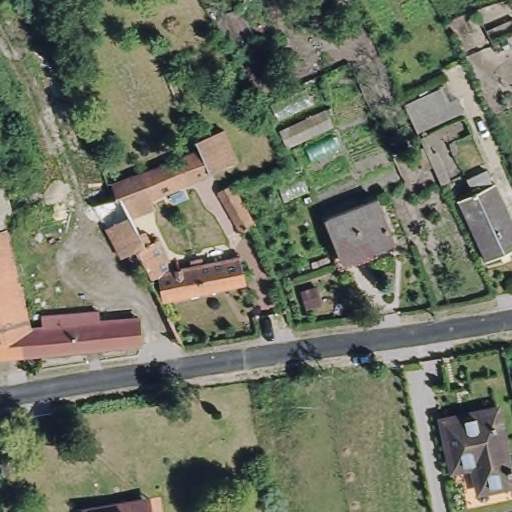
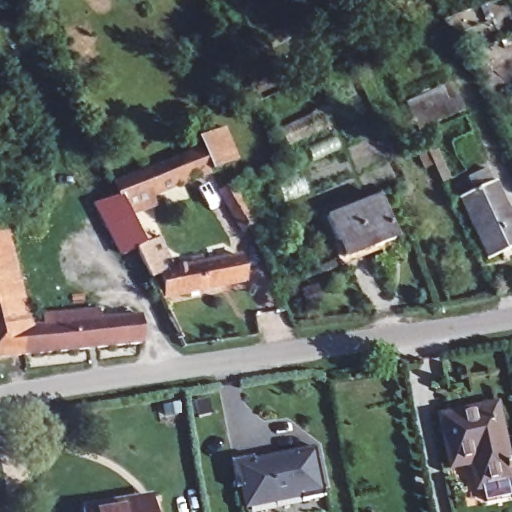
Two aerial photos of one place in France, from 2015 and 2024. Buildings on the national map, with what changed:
unchanged [(450,88),(457,103),(411,125),(404,109),(450,88)]
unchanged [(126,205),(115,182),(197,151),(192,140),(208,134),(222,128),(227,140),(235,162),(224,167),(145,198),(126,205)]
unchanged [(457,194),(467,189),(461,178),(484,166),(512,225),(512,242),(487,255),(457,194)]
demolished [(5,179),(16,220),(0,224),(0,180),(5,179)]
unchanged [(117,208),(135,246),(122,252),(108,222),(105,223),(95,200),(111,196),(107,186),(115,182),(126,205),(117,208)]
demolished [(223,232),(203,191),(215,185),(219,191),(237,226),(223,232)]
unchanged [(344,262),(325,217),(374,196),(395,240),(344,262)]
unchanged [(0,357),(0,227),(7,226),(31,328),(40,326),(39,315),(97,310),(97,321),(135,317),(139,344),(0,357)]
unchanged [(159,275),(150,277),(137,250),(145,246),(158,240),(173,271),(192,267),(190,261),(210,256),(212,263),(238,257),(242,283),(164,299),(159,275)]
unchanged [(475,486),(469,461),(447,466),(437,416),(490,405),(507,479),(475,486)]
new [(255,457),(257,465),(298,457),(297,452),(317,449),(326,497),(304,502),(303,496),(248,507),(245,487),(238,488),(233,462),(255,457)]
unchanged [(85,509),(134,499),(136,512),(85,512),(85,509)]
unchanged [(152,509),(153,512),(139,512),(152,509)]

